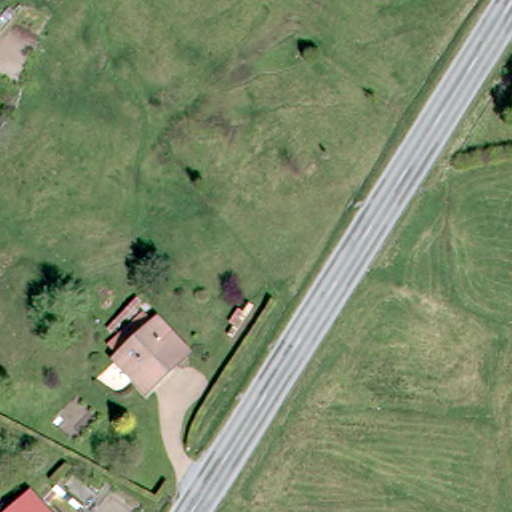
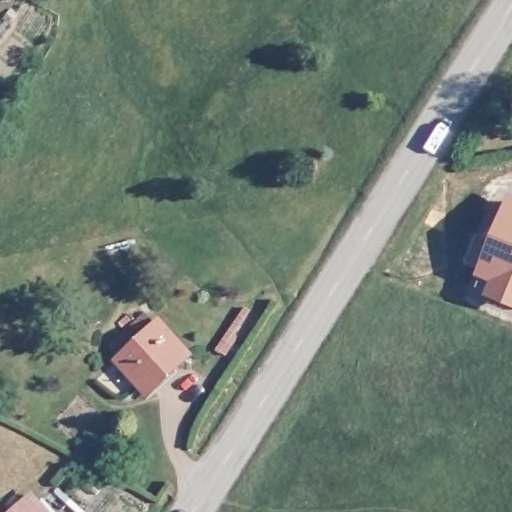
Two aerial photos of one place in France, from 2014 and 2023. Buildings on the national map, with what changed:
new [(487,290),(477,287),(480,277),(476,275),(507,194),(512,196),(512,307),(484,295),(487,290)]
unchanged [(126,365),(130,361),(120,351),(152,320),(164,331),(166,329),(198,361),(157,398),(126,365)]
unchanged [(25,512),(0,512),(0,507),(12,497),(25,512)]
unchanged [(52,512),(29,512),(44,500),(52,512)]

